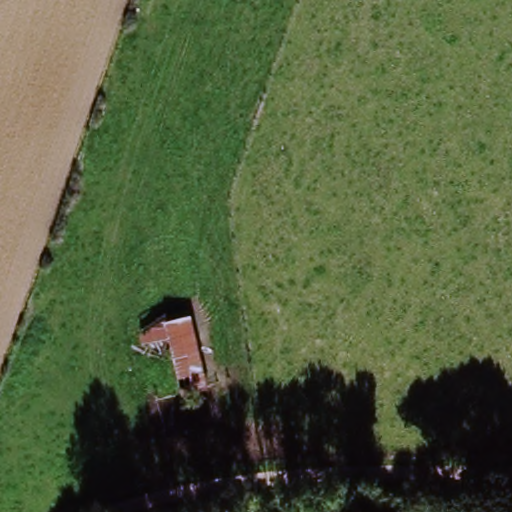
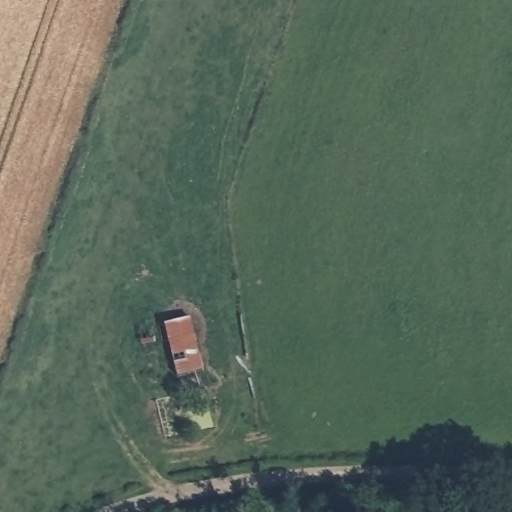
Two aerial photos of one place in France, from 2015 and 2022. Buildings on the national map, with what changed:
unchanged [(194,318),(210,392),(154,401),(140,331),(194,318)]

